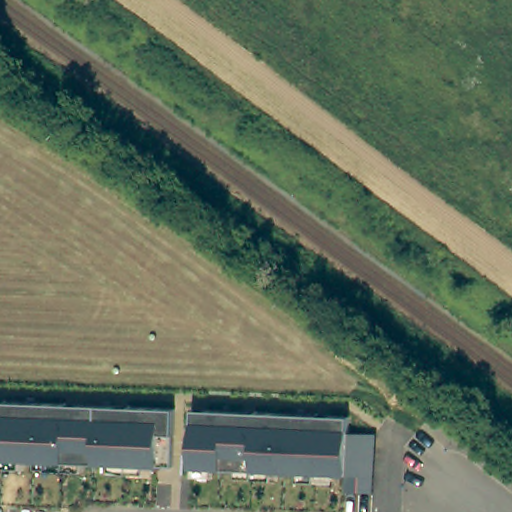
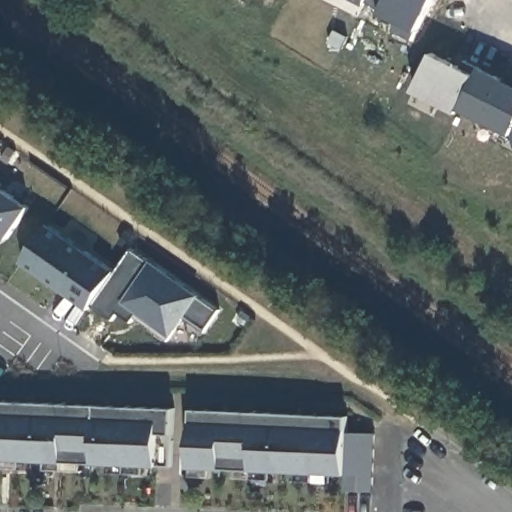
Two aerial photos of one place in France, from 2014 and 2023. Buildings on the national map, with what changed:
new [(339,0),(433,0),(414,39),(395,30),(377,20),(380,16),(363,9),(362,11),(339,0)]
new [(430,49),(460,63),(463,56),(478,64),(458,104),(457,108),(412,85),(430,49)]
new [(502,75),(512,73),(512,127),(477,110),(476,112),(458,104),(478,64),(502,75)]
new [(7,241),(0,236),(0,187),(29,207),(7,241)]
new [(49,224),(116,271),(89,310),(22,262),(49,224)]
new [(218,310),(205,327),(183,315),(170,336),(137,312),(142,303),(130,295),(124,303),(102,290),(116,271),(132,249),(142,256),(218,310)]
unchanged [(147,474),(111,473),(111,463),(86,462),(85,471),(47,470),(47,461),(21,460),(21,469),(0,468),(0,401),(172,408),(173,436),(173,466),(147,465),(147,474)]
unchanged [(347,491),(347,475),(334,474),(333,483),(298,481),(298,471),(273,470),(272,479),(237,477),(237,469),(190,467),(192,410),(347,415),(347,431),(377,433),(375,492),(347,491)]

